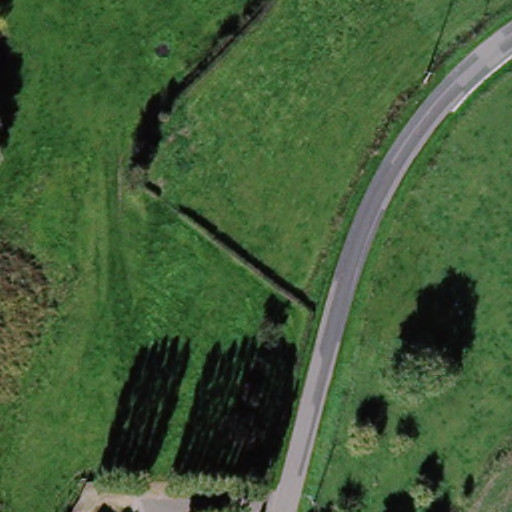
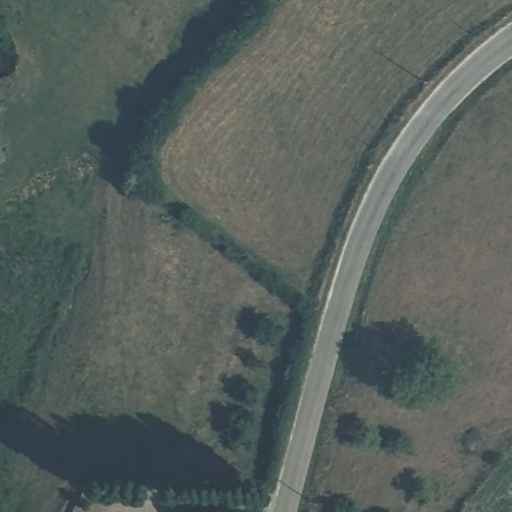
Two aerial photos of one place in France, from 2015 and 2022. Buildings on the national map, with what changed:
unchanged [(104,510),(107,512),(103,512),(104,510)]

